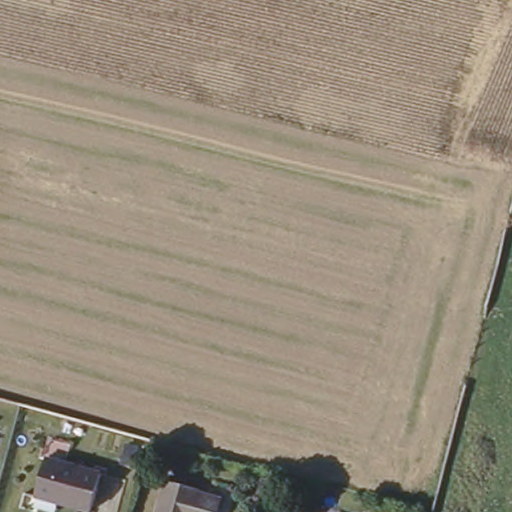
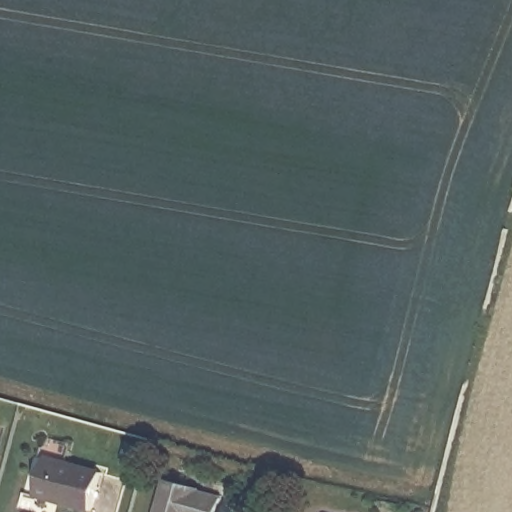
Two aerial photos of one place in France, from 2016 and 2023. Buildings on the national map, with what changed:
unchanged [(46,457),(99,473),(89,509),(35,494),(46,457)]
unchanged [(197,487),(196,490),(220,497),(215,512),(156,512),(166,478),(197,487)]

